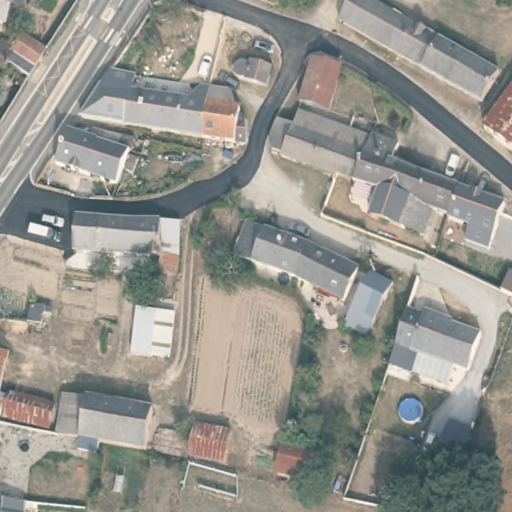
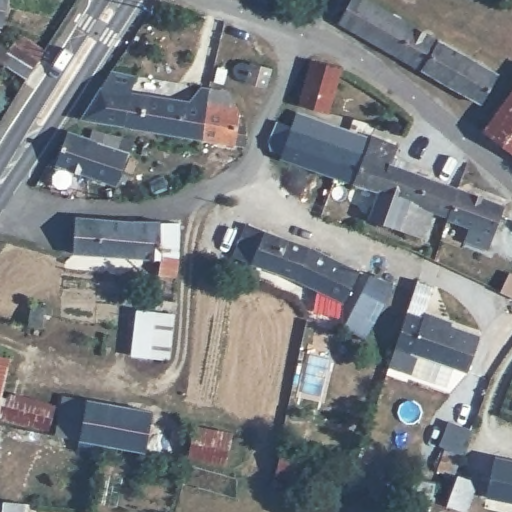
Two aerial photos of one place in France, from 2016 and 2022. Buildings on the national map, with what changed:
unchanged [(0,21),(0,0),(6,0),(1,21),(0,21)]
unchanged [(245,7),(222,0),(285,0),(280,18),(245,7)]
unchanged [(484,103),(340,22),(352,0),(367,0),(500,75),(484,103)]
unchanged [(8,67),(1,72),(0,71),(0,49),(1,47),(10,51),(21,36),(46,51),(28,78),(8,67)]
unchanged [(330,112),(300,104),(314,59),(335,66),(343,69),(330,112)]
unchanged [(268,86),(248,83),(247,79),(240,78),(235,73),(235,69),(236,64),(242,61),(252,64),(253,61),(273,68),(268,86)]
unchanged [(137,75),(133,93),(126,125),(82,118),(111,72),(137,75)]
unchanged [(214,89),(204,138),(195,137),(126,125),(133,93),(195,103),(197,95),(204,87),(214,89)]
unchanged [(232,92),(235,108),(241,110),(241,119),(247,121),(247,144),(204,138),(214,89),(232,92)]
unchanged [(499,139),(486,131),(512,94),(512,150),(499,139)]
unchanged [(295,127),(301,113),(351,131),(350,134),(373,138),(371,144),(356,183),(352,195),(332,188),(335,176),(284,158),(282,152),(272,150),(270,142),(279,121),(295,127)]
unchanged [(56,165),(69,131),(91,139),(94,129),(120,136),(123,137),(136,140),(133,152),(131,151),(116,191),(56,165)]
unchanged [(398,146),(393,163),(458,188),(454,199),(449,215),(435,210),(425,236),(372,217),(381,191),(356,183),(371,144),(373,138),(374,135),(398,146)]
unchanged [(505,205),(503,211),(512,215),(512,224),(509,233),(496,228),(490,249),(466,241),(471,226),(450,220),(449,215),(454,199),(458,188),(505,205)]
unchanged [(160,275),(161,258),(76,253),(79,217),(129,221),(161,222),(161,223),(181,224),(180,258),(177,276),(160,275)]
unchanged [(282,238),(313,250),(354,271),(340,301),(294,279),(230,257),(246,224),(282,238)]
unchanged [(395,283),(367,337),(346,326),(371,275),(395,283)]
unchanged [(46,308),(43,326),(29,324),(33,307),(46,308)]
unchanged [(131,354),(138,310),(158,312),(174,314),(168,358),(156,357),(131,354)]
unchanged [(413,373),(390,366),(391,365),(398,344),(408,312),(423,318),(425,315),(482,336),(468,371),(455,366),(449,385),(413,373)]
unchanged [(3,391),(56,404),(50,430),(0,418),(0,356),(10,358),(3,391)]
unchanged [(79,449),(81,438),(57,434),(64,396),(153,412),(146,451),(99,442),(91,440),(90,451),(79,449)]
unchanged [(473,430),(465,451),(455,477),(436,470),(446,447),(438,445),(449,420),(473,430)]
unchanged [(233,433),(226,463),(190,456),(197,425),(233,433)]
unchanged [(336,457),(329,486),(278,474),(287,445),(336,457)]
new [(487,497),(496,456),(512,459),(512,502),(487,497)]
unchanged [(466,512),(464,512),(447,506),(455,477),(458,471),(477,476),(466,512)]
unchanged [(0,501),(6,501),(25,503),(24,512),(0,512),(0,501)]

